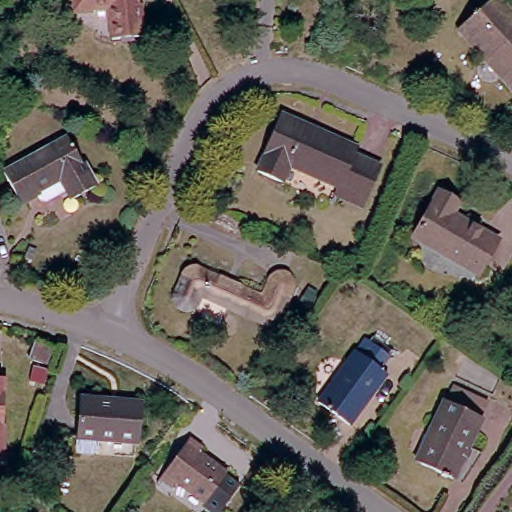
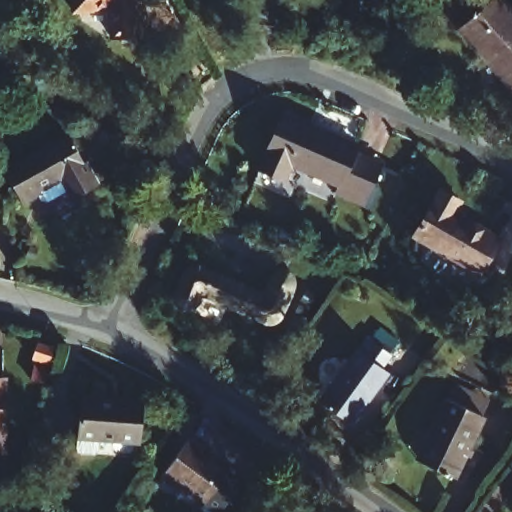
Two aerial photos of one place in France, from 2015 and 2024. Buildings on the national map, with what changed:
unchanged [(140,33),(107,38),(102,6),(85,8),(85,12),(66,15),(64,0),(135,0),(140,33)]
unchanged [(512,9),(512,83),(498,91),(455,21),(490,0),(507,0),(512,9)]
unchanged [(255,168),(280,111),(353,143),(350,149),(377,161),(358,203),(331,191),(334,184),(286,162),(278,178),(255,168)]
unchanged [(0,162),(0,160),(63,124),(90,171),(69,183),(67,180),(57,186),(55,183),(41,191),(33,190),(30,184),(17,192),(0,162)]
unchanged [(449,208),(493,235),(473,269),(412,232),(437,187),(455,198),(449,208)]
unchanged [(183,263),(261,290),(266,275),(270,271),(272,270),(275,269),(279,270),(282,271),(285,275),(286,278),(286,282),(286,285),(272,325),(194,298),(193,303),(190,306),(185,309),(180,310),(177,309),(174,307),(172,304),(171,300),(171,297),(183,263)]
unchanged [(342,428),(311,405),(358,340),(383,360),(374,371),(380,377),(342,428)]
unchanged [(20,377),(24,363),(45,368),(40,385),(20,377)]
unchanged [(421,440),(416,437),(436,395),(474,413),(444,471),(413,455),(421,440)]
unchanged [(80,398),(138,399),(138,438),(101,437),(102,449),(98,453),(86,453),(82,449),(81,436),(80,398)]
unchanged [(158,473),(185,435),(199,444),(195,449),(221,468),(201,496),(175,477),(171,482),(158,473)]

